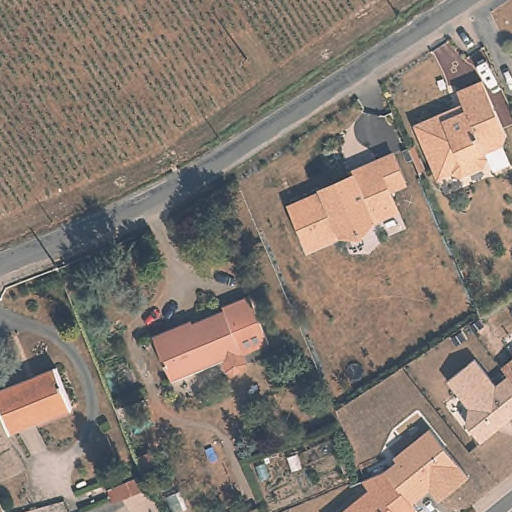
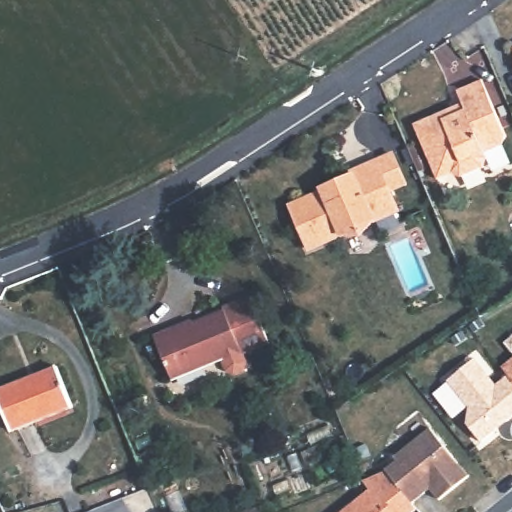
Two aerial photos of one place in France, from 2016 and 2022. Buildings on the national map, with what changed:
unchanged [(432,173),(412,127),(439,115),(460,106),(455,93),(480,82),(503,138),(499,147),(482,155),(484,160),(481,169),(458,179),(449,176),(436,182),(432,173)]
unchanged [(323,194),(355,181),(353,178),(379,167),(395,160),(407,189),(392,196),(401,216),(376,227),(362,240),(344,241),(311,255),(292,212),(325,198),(323,194)]
unchanged [(247,369),(237,373),(231,370),(226,358),(175,378),(156,334),(172,328),(175,334),(197,326),(195,321),(227,309),(226,306),(252,296),(272,344),(246,353),(250,363),(247,369)]
unchanged [(481,441),(466,422),(469,408),(447,381),(476,359),(496,383),(508,374),(512,380),(512,416),(481,441)]
unchanged [(502,367),(512,360),(512,380),(502,367)]
unchanged [(69,406),(11,429),(0,403),(0,387),(53,366),(69,406)]
unchanged [(467,475),(438,499),(433,493),(411,512),(341,512),(370,489),(366,483),(431,428),(467,475)]
unchanged [(257,506),(260,512),(242,512),(257,506)]

